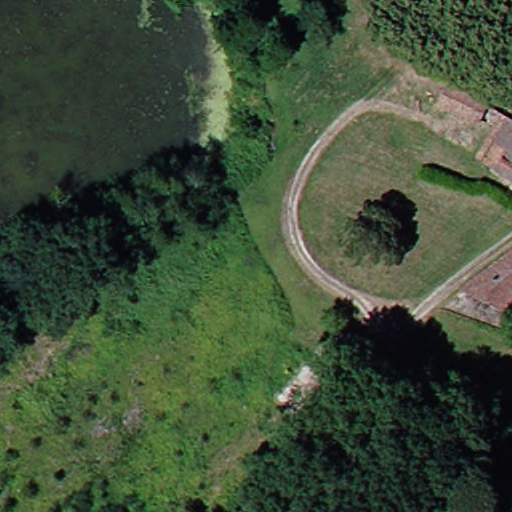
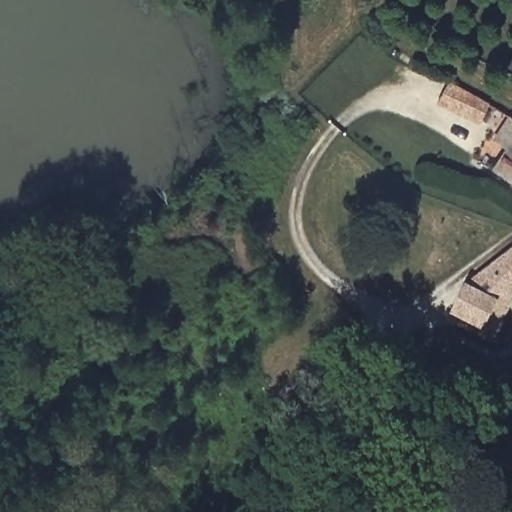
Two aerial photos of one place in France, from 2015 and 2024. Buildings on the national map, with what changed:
unchanged [(432,99),(439,82),(482,101),(475,117),(432,99)]
unchanged [(512,119),(512,144),(500,136),(512,119)]
unchanged [(512,148),(512,184),(496,173),(512,148)]
unchanged [(512,311),(473,293),(470,289),(512,256),(512,311)]

